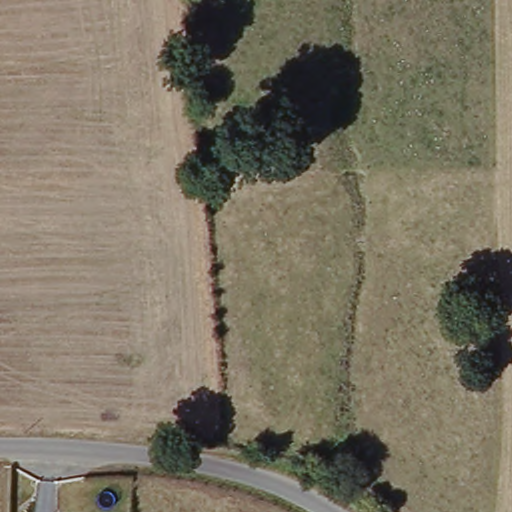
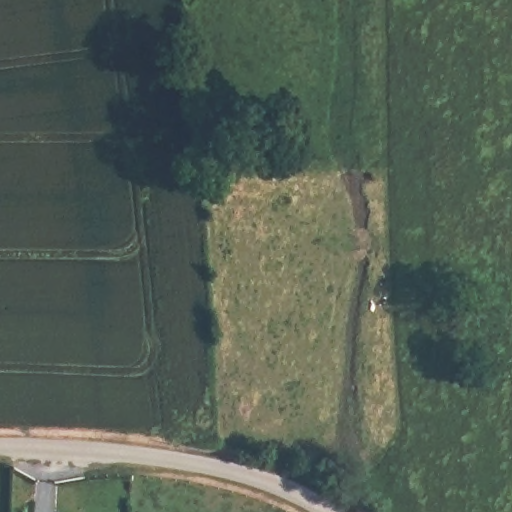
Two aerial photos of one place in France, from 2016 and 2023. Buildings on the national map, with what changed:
[]

